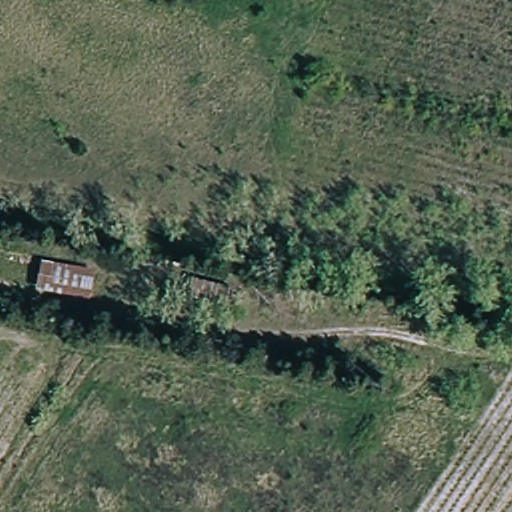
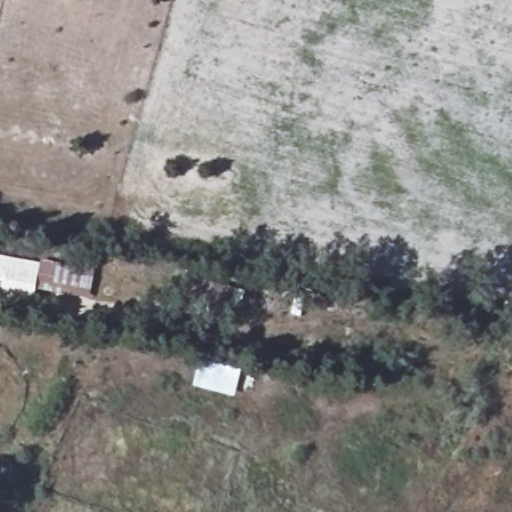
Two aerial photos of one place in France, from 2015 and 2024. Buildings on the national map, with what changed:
unchanged [(93,294),(40,285),(45,256),(98,265),(93,294)]
unchanged [(234,303),(191,292),(196,273),(239,284),(234,303)]

